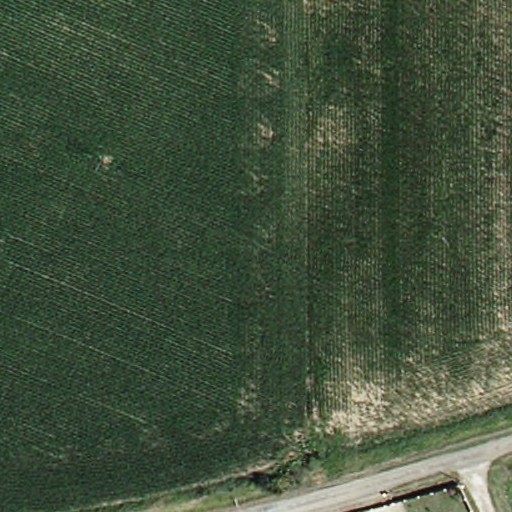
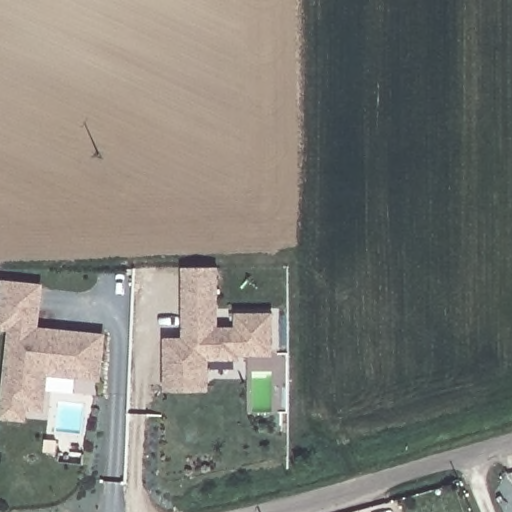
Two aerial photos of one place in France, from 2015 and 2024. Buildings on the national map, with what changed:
new [(166,391),(166,376),(165,342),(184,342),(184,324),(183,290),(183,270),(215,269),(215,289),(216,331),(236,330),(236,317),(272,316),(272,356),(238,356),(238,360),(207,361),(207,376),(208,391),(166,391)]
new [(76,378),(46,376),(42,412),(25,410),(24,421),(3,419),(10,330),(0,329),(0,307),(2,285),(38,289),(34,331),(101,338),(99,365),(98,380),(76,378)]

